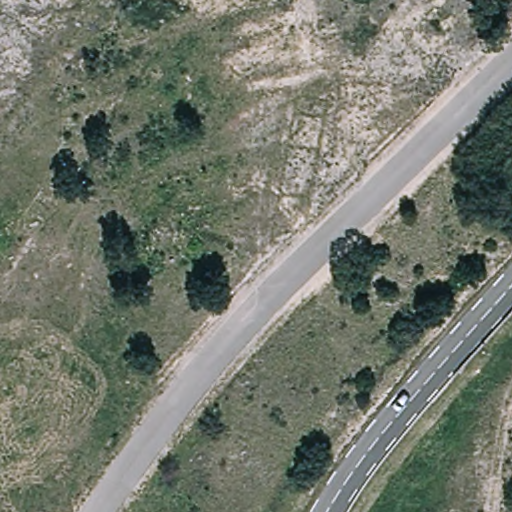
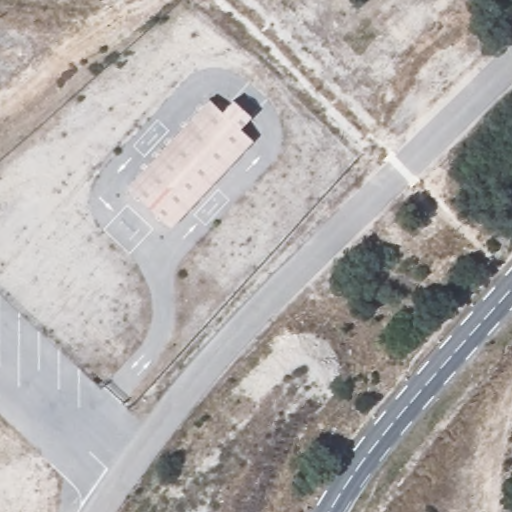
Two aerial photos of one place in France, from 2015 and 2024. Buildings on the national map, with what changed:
new [(209,100),(222,112),(233,101),(252,119),(241,130),(253,142),(171,229),(127,188),(209,100)]

